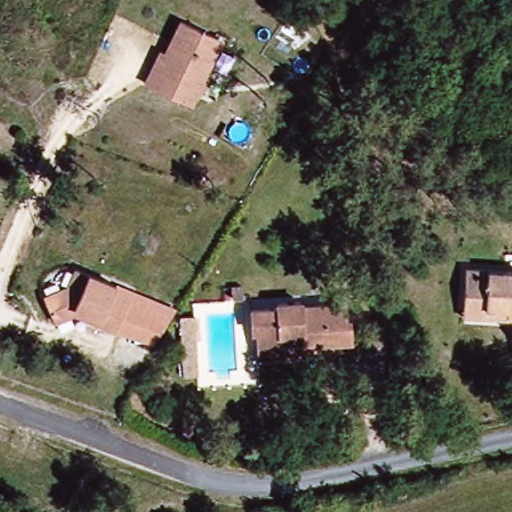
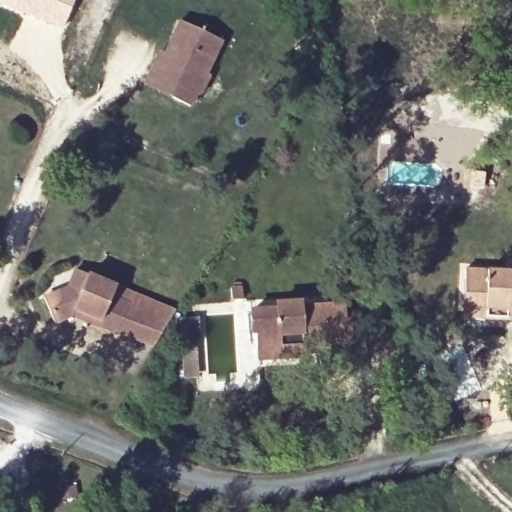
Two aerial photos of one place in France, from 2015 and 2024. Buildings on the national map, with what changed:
new [(62,30),(0,6),(0,0),(75,0),(62,30)]
unchanged [(152,75),(158,61),(163,64),(181,23),(223,43),(208,77),(211,80),(204,98),(197,99),(192,110),(173,102),(146,89),(152,75)]
unchanged [(52,326),(40,300),(66,290),(74,272),(114,290),(175,312),(151,350),(98,327),(72,317),(52,326)]
unchanged [(512,277),(512,326),(502,326),(480,326),(462,326),(462,311),(462,280),(512,277)]
unchanged [(246,304),(235,306),(234,295),(244,293),(246,304)]
unchanged [(265,337),(260,337),(257,317),(285,312),(285,308),(308,305),(309,311),(347,304),(352,326),(355,325),(357,341),(337,345),(337,348),(309,353),(309,357),(288,361),(269,363),(267,352),(265,337)]
unchanged [(195,319),(198,380),(184,382),(177,322),(195,319)]

